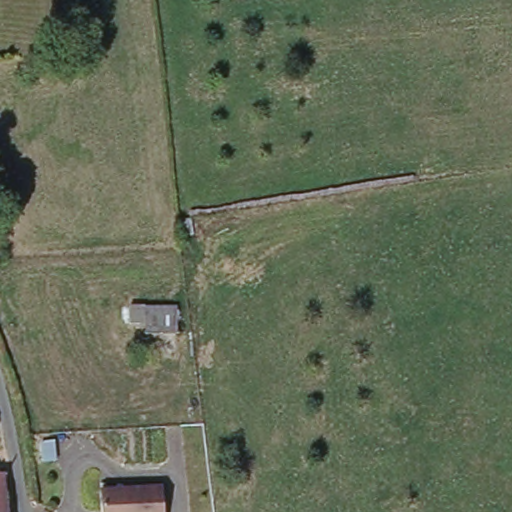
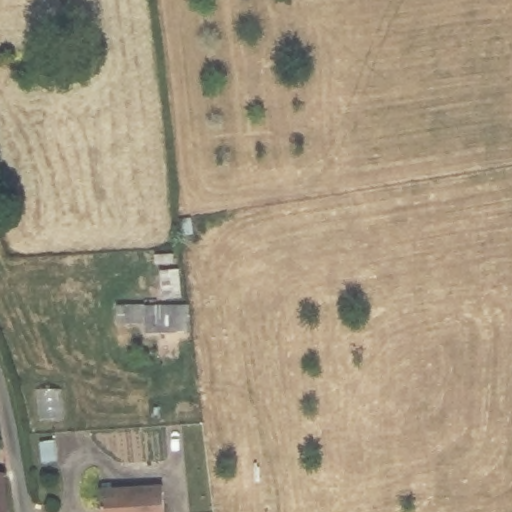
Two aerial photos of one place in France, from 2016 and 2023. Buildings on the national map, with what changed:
unchanged [(146,307),(184,307),(185,339),(149,340),(146,307)]
unchanged [(10,512),(0,512),(0,474),(6,475),(10,512)]
unchanged [(170,512),(107,512),(105,493),(168,488),(170,512)]

